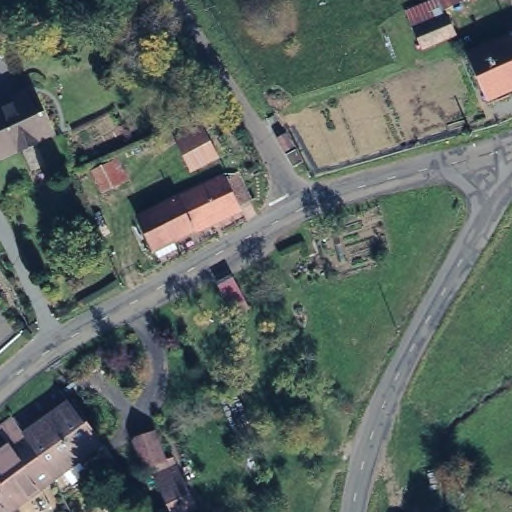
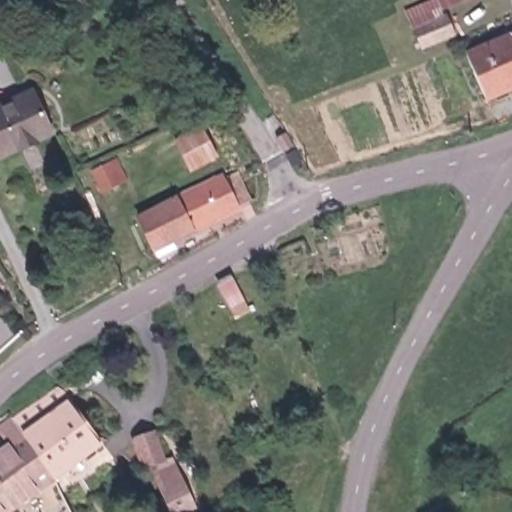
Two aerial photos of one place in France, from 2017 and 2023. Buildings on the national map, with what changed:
unchanged [(453,0),(461,0),(454,3),(453,0)]
unchanged [(458,47),(512,23),(512,94),(485,107),(458,47)]
unchanged [(40,122),(0,140),(0,100),(22,89),(40,122)]
unchanged [(203,131),(209,151),(186,161),(177,139),(203,131)]
unchanged [(133,181),(112,192),(102,175),(121,164),(133,181)]
unchanged [(247,207),(166,238),(151,207),(231,176),(247,207)]
unchanged [(250,302),(227,313),(214,285),(233,272),(250,302)]
unchanged [(59,392),(100,447),(57,481),(15,423),(59,392)]
unchanged [(57,481),(17,512),(0,512),(0,458),(13,448),(3,432),(15,423),(57,481)]
unchanged [(158,458),(139,463),(133,448),(129,437),(149,432),(150,436),(158,458)]
unchanged [(178,459),(199,508),(190,512),(165,512),(149,472),(178,459)]

